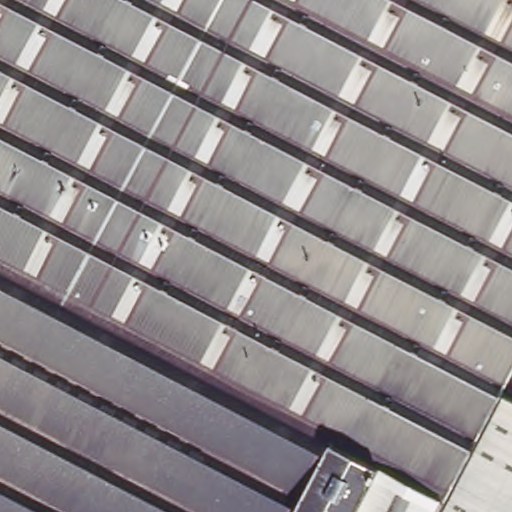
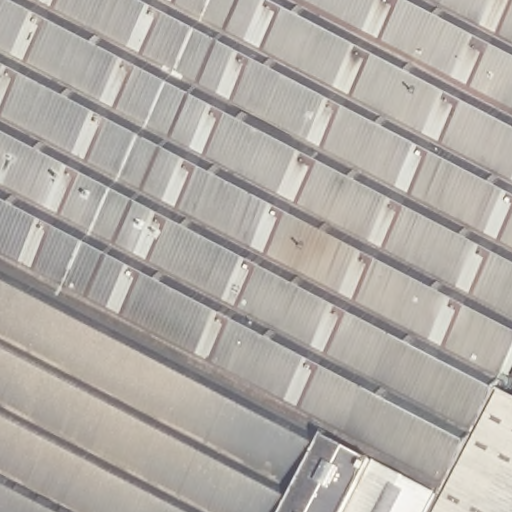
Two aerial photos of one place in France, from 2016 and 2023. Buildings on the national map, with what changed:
unchanged [(512,370),(507,379),(512,381),(512,512),(0,512),(0,0),(512,0),(512,370)]

